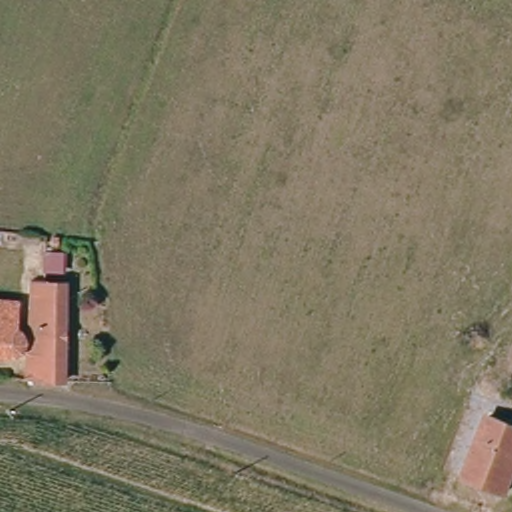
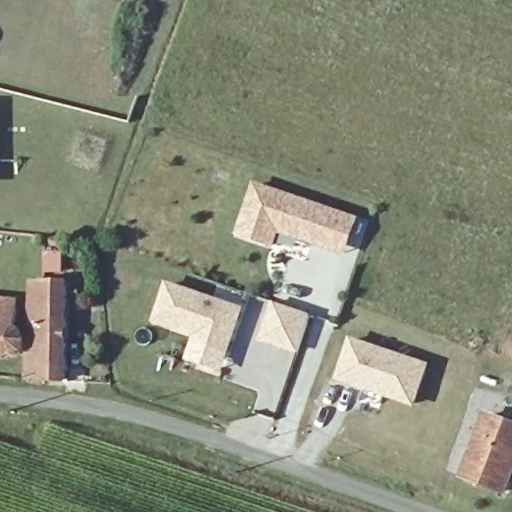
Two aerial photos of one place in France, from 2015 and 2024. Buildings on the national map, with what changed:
new [(359,217),(346,256),(280,234),(275,248),(237,235),(255,182),(359,217)]
new [(244,308),(228,356),(191,344),(194,336),(154,324),(167,283),(244,308)]
unchanged [(23,380),(24,343),(39,343),(40,284),(61,284),(59,381),(40,381),(23,380)]
unchanged [(12,293),(18,302),(13,310),(13,320),(20,325),(19,341),(2,351),(0,357),(0,292),(12,293)]
new [(311,315),(298,356),(258,343),(273,301),(311,315)]
new [(430,365),(415,408),(335,381),(350,337),(430,365)]
unchanged [(512,427),(512,468),(504,492),(462,478),(483,417),(512,427)]

